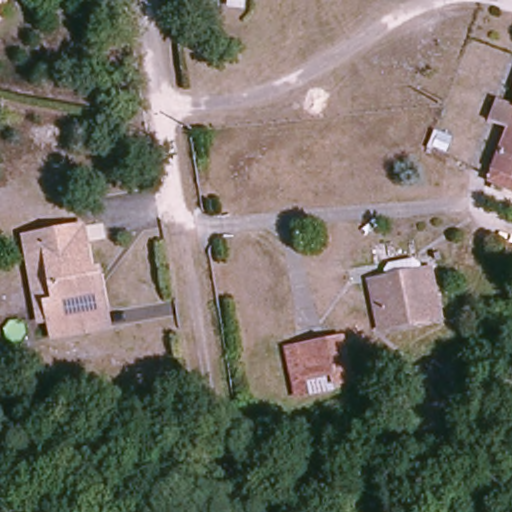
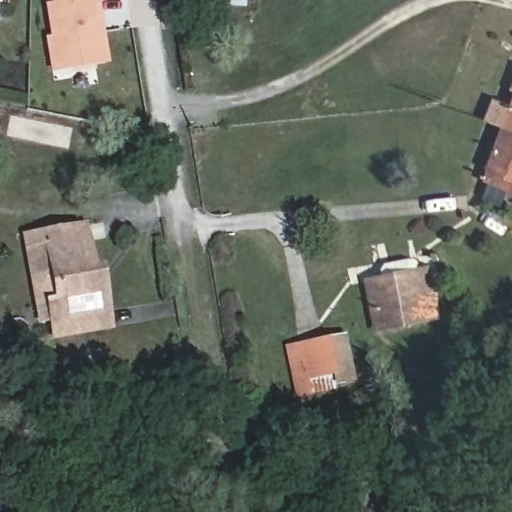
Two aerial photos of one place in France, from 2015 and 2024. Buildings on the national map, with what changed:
unchanged [(0,0),(8,0),(8,2),(0,3),(0,0)]
new [(67,70),(65,57),(50,60),(47,41),(52,40),(46,9),(53,7),(52,0),(95,0),(98,17),(100,33),(105,63),(67,70)]
new [(219,0),(216,26),(198,25),(200,0),(219,0)]
unchanged [(509,125),(491,116),(499,98),(512,103),(512,126),(509,125)]
unchanged [(489,170),(494,159),(509,125),(512,126),(512,180),(489,170)]
unchanged [(58,326),(53,310),(46,311),(39,286),(25,242),(44,236),(65,230),(80,225),(84,240),(99,289),(105,286),(112,310),(116,324),(62,340),(58,326)]
unchanged [(431,273),(439,321),(386,330),(379,282),(431,273)]
unchanged [(309,395),(298,396),(290,348),(346,338),(352,382),(337,384),(339,390),(309,395)]

